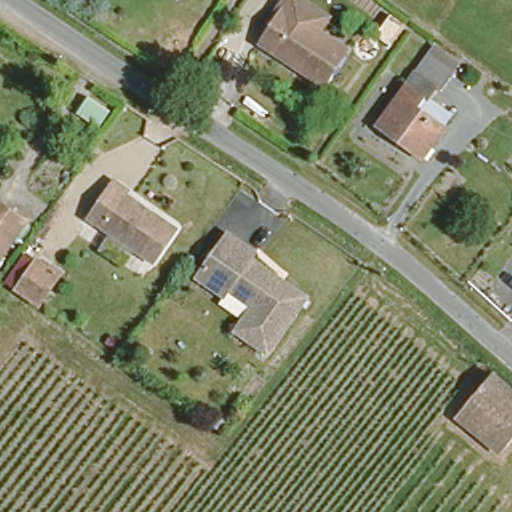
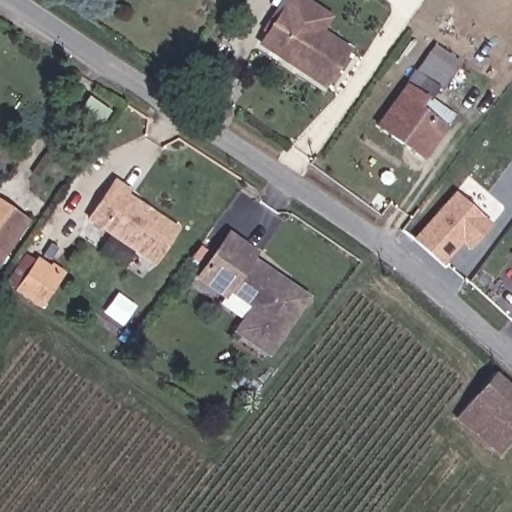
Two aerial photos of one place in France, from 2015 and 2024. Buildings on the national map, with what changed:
unchanged [(285,9),(349,51),(325,86),(262,44),(285,9)]
unchanged [(448,111),(418,153),(374,121),(413,66),(431,43),(456,61),(439,85),(434,81),(425,94),(448,111)]
unchanged [(122,95),(97,127),(76,114),(99,81),(122,95)]
unchanged [(143,264),(79,217),(104,183),(168,230),(143,264)]
new [(451,191),(490,219),(469,247),(461,241),(443,266),(414,241),(451,191)]
unchanged [(28,210),(0,251),(0,192),(28,210)]
unchanged [(248,307),(221,289),(217,294),(191,277),(222,232),(249,251),(245,256),(301,295),(260,353),(230,332),(248,307)]
unchanged [(20,291),(39,263),(61,277),(42,306),(20,291)]
unchanged [(452,414),(489,369),(512,388),(512,431),(496,450),(452,414)]

